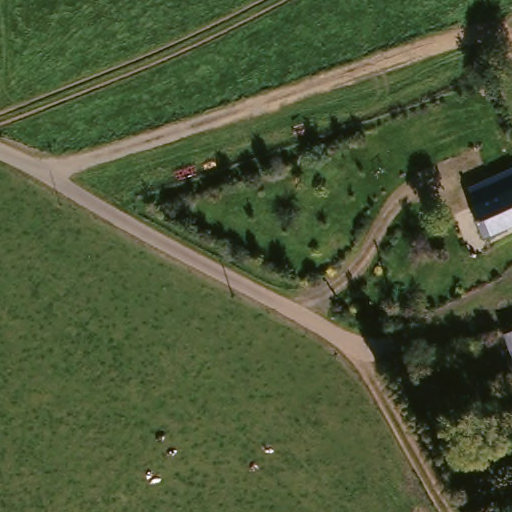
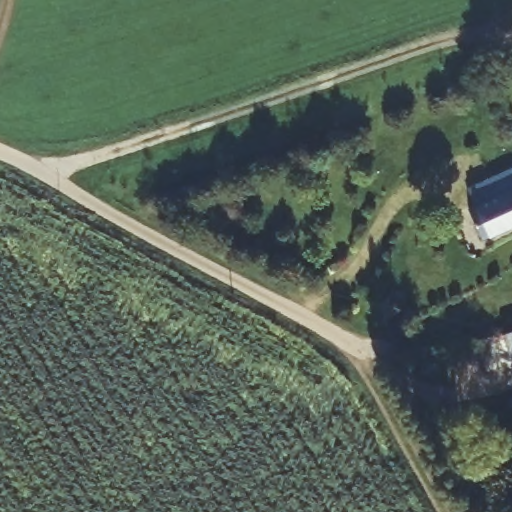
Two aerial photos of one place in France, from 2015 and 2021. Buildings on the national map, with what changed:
unchanged [(493,197),(489,188),(503,182),(508,190),(512,189),(512,225),(485,237),(471,208),(493,197)]

